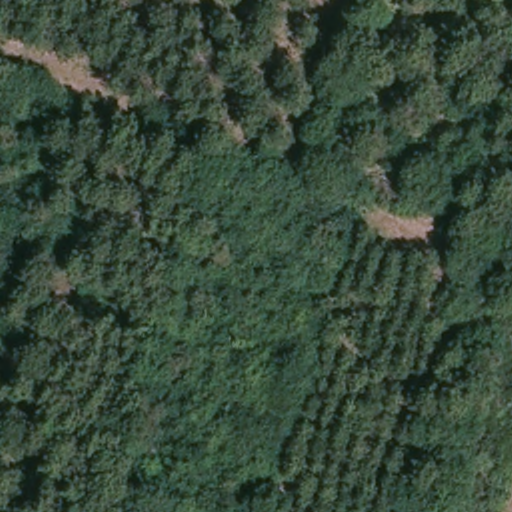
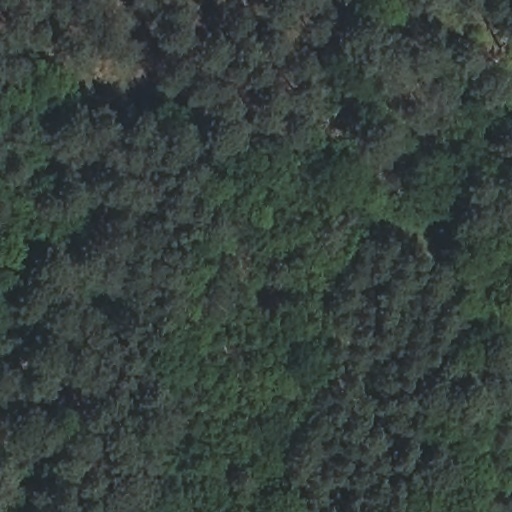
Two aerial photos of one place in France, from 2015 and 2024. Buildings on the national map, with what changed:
[]

